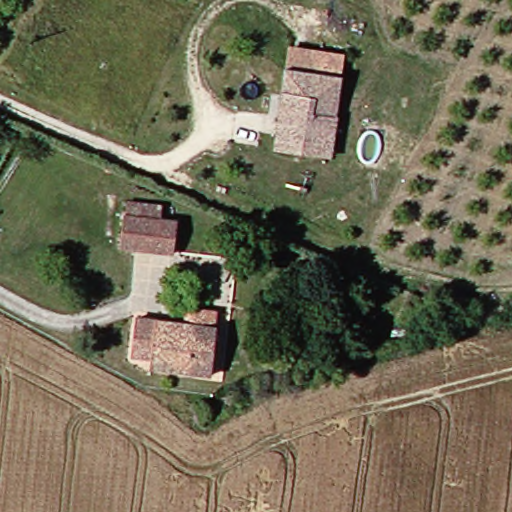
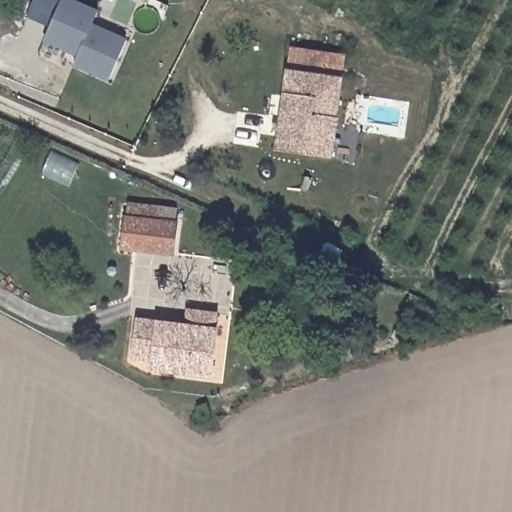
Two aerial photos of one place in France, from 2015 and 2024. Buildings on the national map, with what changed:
new [(45,38),(61,0),(75,0),(97,9),(92,22),(127,38),(110,77),(74,61),(65,58),(69,48),(45,38)]
unchanged [(305,155),(272,149),(283,70),(340,78),(333,119),(328,157),(305,155)]
unchanged [(166,251),(117,246),(120,214),(124,215),(124,202),(155,205),(154,218),(168,220),(166,251)]
unchanged [(144,374),(146,363),(125,360),(131,323),(207,332),(201,379),(144,374)]

